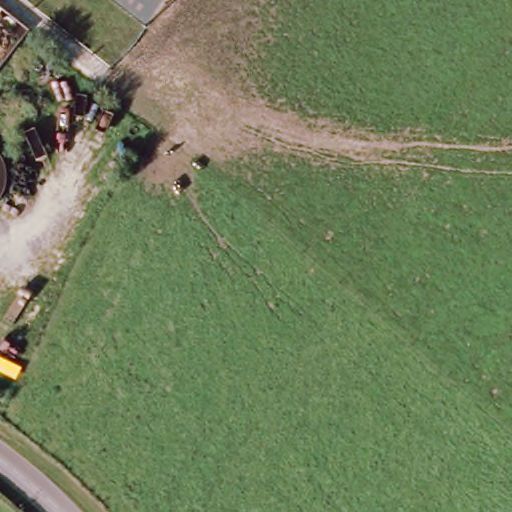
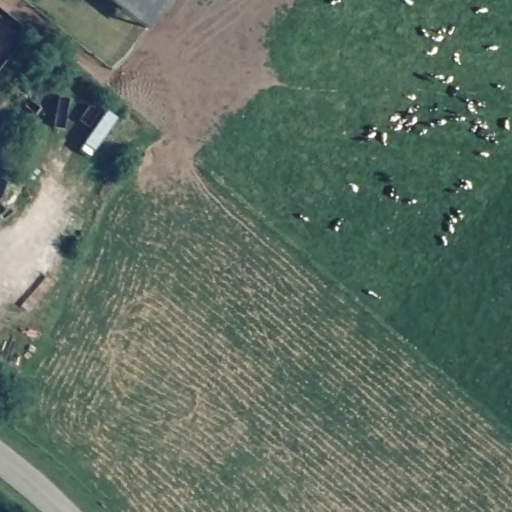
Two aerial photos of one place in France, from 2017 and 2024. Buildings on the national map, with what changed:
unchanged [(150,26),(142,20),(116,0),(170,0),(150,26)]

